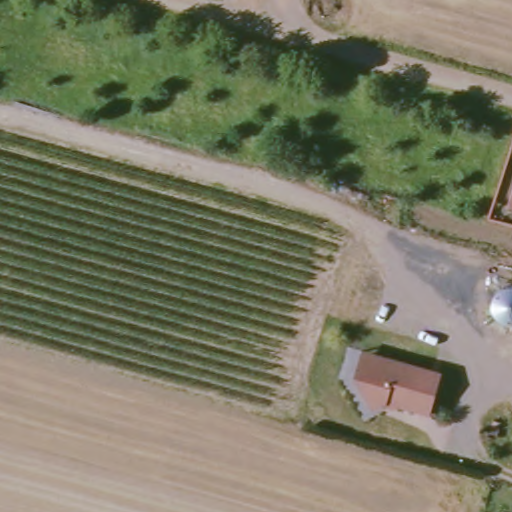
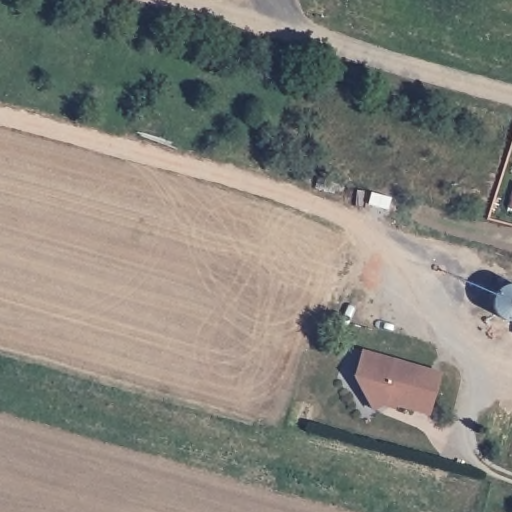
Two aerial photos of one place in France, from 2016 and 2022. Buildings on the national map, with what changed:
unchanged [(485,294),(486,291),(487,289),(489,286),(491,285),(493,282),(496,281),(499,280),(502,279),(504,279),(507,279),(508,279),(511,280),(512,281),(512,316),(511,316),(508,317),(506,317),(504,317),(501,316),(496,315),(493,313),(490,310),(487,305),(485,303),(485,301),(485,300),(485,298),(485,295),(485,294)]
unchanged [(433,413),(391,401),(389,401),(377,410),(358,375),(366,351),(377,355),(445,374),(433,413)]

